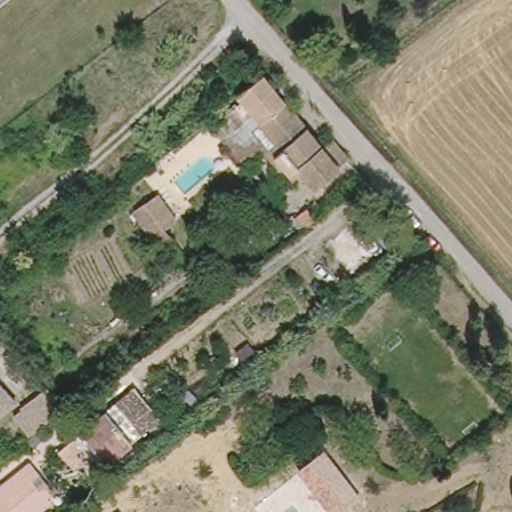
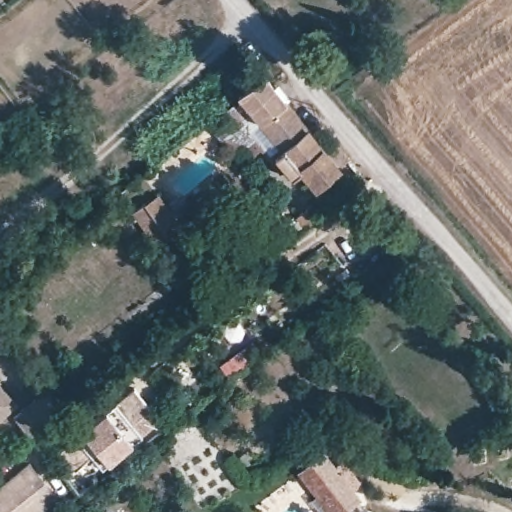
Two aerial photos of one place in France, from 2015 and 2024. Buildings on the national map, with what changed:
unchanged [(328,152),(338,145),(353,163),(342,172),(344,173),(319,194),(303,176),(296,182),(280,162),(287,155),(265,127),(247,107),(242,101),(270,80),(292,106),(328,152)]
unchanged [(265,127),(287,155),(280,162),(277,164),(269,153),(247,170),(227,146),(238,135),(230,124),(247,107),(265,127)]
unchanged [(164,249),(135,210),(147,201),(158,192),(178,219),(167,227),(175,240),(164,249)]
unchanged [(296,217),(307,209),(315,220),(305,228),(296,217)]
unchanged [(0,416),(0,379),(17,402),(0,416)]
unchanged [(134,382),(161,421),(115,461),(85,425),(134,382)]
unchanged [(361,500),(344,512),(328,512),(298,471),(325,451),(361,500)]
unchanged [(41,512),(12,512),(2,500),(0,501),(0,481),(29,460),(51,487),(46,492),(54,502),(41,512)]
unchanged [(124,510),(126,512),(121,512),(124,510)]

